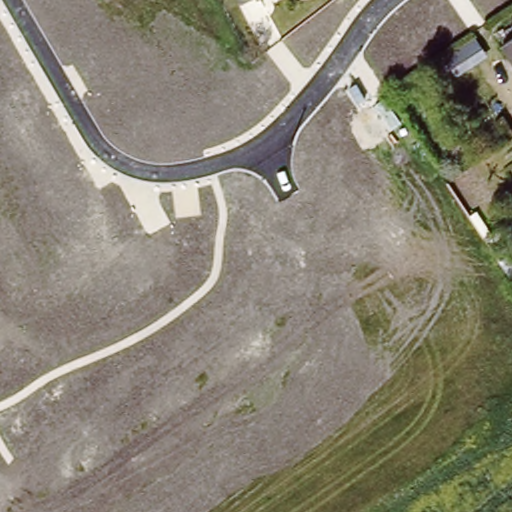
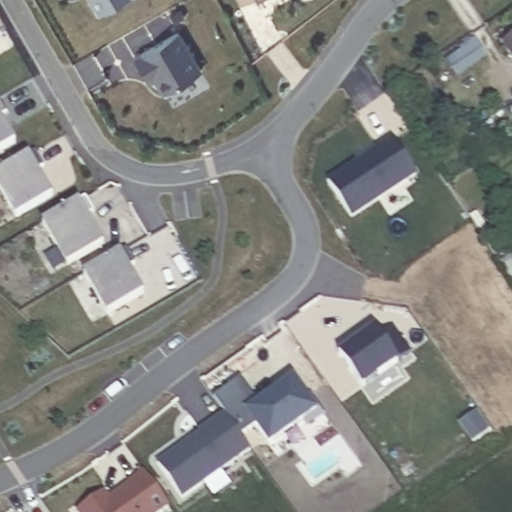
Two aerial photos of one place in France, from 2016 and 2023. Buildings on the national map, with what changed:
new [(90,0),(121,0),(97,13),(90,0)]
unchanged [(254,0),(257,0),(254,1),(254,0)]
new [(0,22),(5,30),(0,33),(0,22)]
new [(180,32),(201,69),(162,93),(154,79),(149,82),(133,57),(180,32)]
unchanged [(502,43),(512,37),(512,58),(502,43)]
new [(2,117),(16,142),(0,151),(0,100),(7,111),(2,117)]
new [(327,182),(392,137),(416,174),(352,218),(327,182)]
new [(35,150),(44,166),(38,170),(52,195),(16,216),(0,191),(0,171),(28,154),(35,150)]
new [(42,221),(79,201),(85,197),(94,213),(89,218),(104,244),(66,265),(42,221)]
new [(84,272),(121,251),(127,248),(135,262),(129,267),(142,292),(106,313),(84,272)]
new [(374,327),(381,336),(394,328),(410,351),(398,361),(362,386),(337,353),(374,327)]
new [(199,432),(197,429),(222,412),(214,397),(242,377),(259,399),(293,376),(316,406),(317,404),(324,414),(307,425),(304,420),(267,445),(254,426),(242,437),(250,449),(182,497),(157,463),(199,432)]
new [(104,491),(108,496),(127,483),(126,481),(142,470),(169,506),(160,512),(77,512),(77,511),(104,491)]

